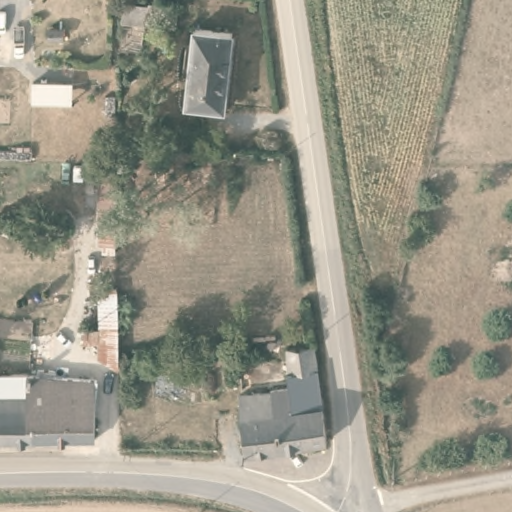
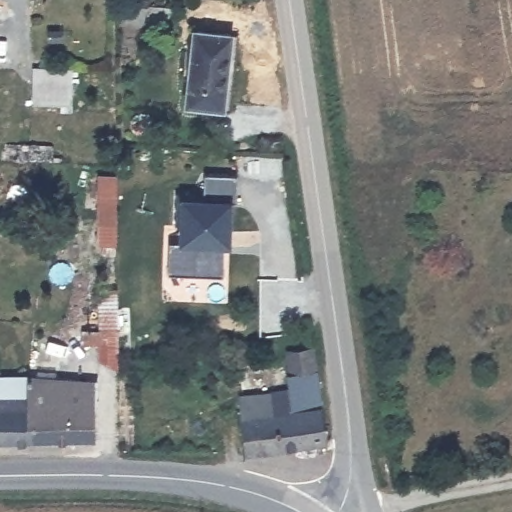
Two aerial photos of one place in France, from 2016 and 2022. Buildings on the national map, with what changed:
unchanged [(174,25),(135,21),(121,20),(122,0),(136,2),(177,6),(174,25)]
unchanged [(232,34),(225,107),(186,102),(192,30),(232,34)]
unchanged [(120,362),(99,361),(99,271),(107,270),(106,245),(99,245),(99,213),(86,213),(87,166),(119,165),(120,362)]
new [(232,201),(231,249),(221,249),(222,277),(165,276),(167,244),(177,245),(180,197),(200,199),(203,175),(236,176),(232,201)]
unchanged [(297,407),(295,384),(292,371),(281,371),(280,360),(293,356),(291,343),(317,340),(330,440),(281,445),(278,411),(297,407)]
unchanged [(32,377),(32,371),(55,371),(56,377),(92,377),(94,440),(34,441),(0,442),(0,377),(26,377),(32,377)]
unchanged [(242,390),(295,384),(297,407),(278,411),(281,445),(251,448),(242,390)]

